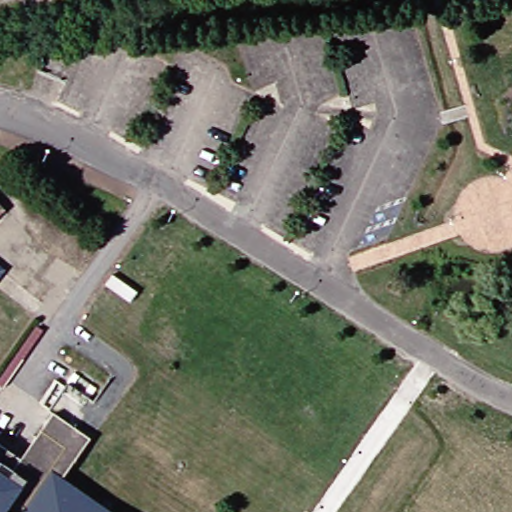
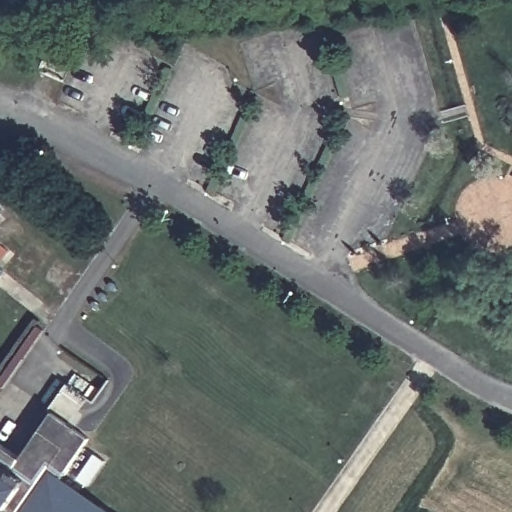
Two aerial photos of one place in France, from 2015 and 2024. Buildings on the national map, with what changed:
unchanged [(50,427),(61,408),(89,426),(100,434),(69,478),(121,512),(22,512),(21,511),(21,512),(0,512),(0,443),(29,462),(50,427)]

